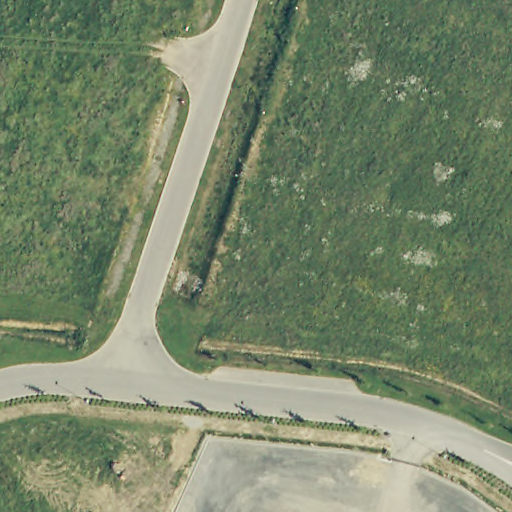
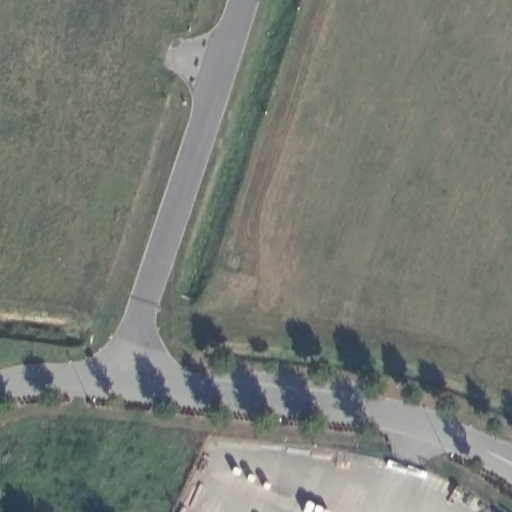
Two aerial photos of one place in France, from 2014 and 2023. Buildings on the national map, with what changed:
[]

